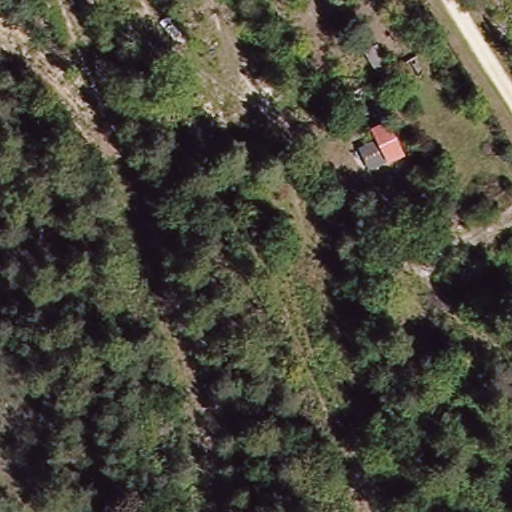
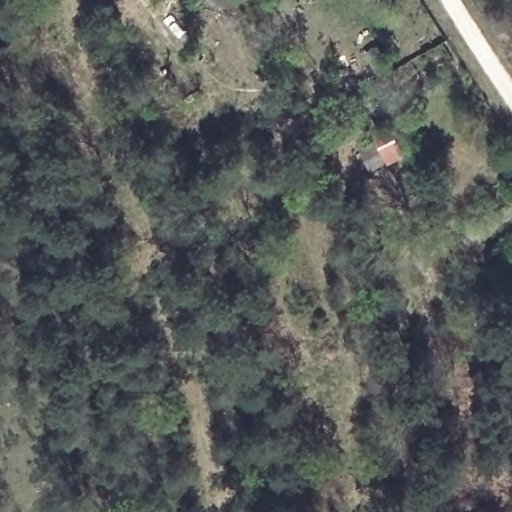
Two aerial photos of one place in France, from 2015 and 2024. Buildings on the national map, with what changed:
unchanged [(398,156),(381,164),(369,142),(387,133),(398,156)]

